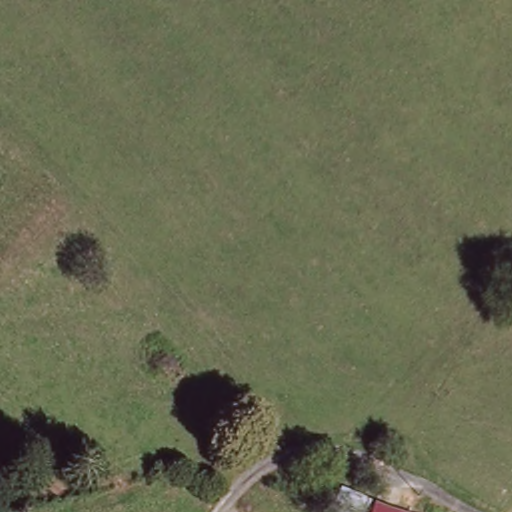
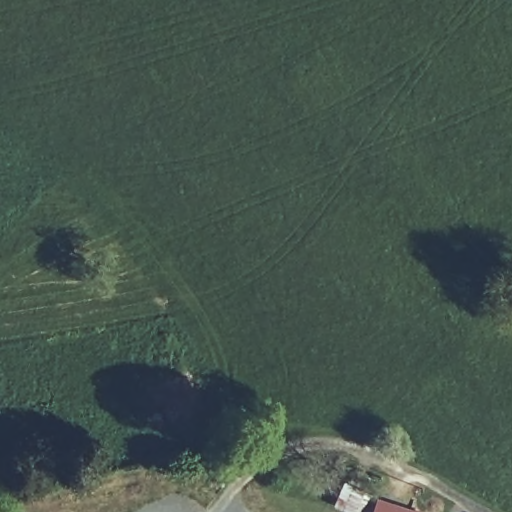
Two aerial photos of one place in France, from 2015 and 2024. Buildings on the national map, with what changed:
unchanged [(417,512),(373,512),(378,498),(414,511),(417,512)]

